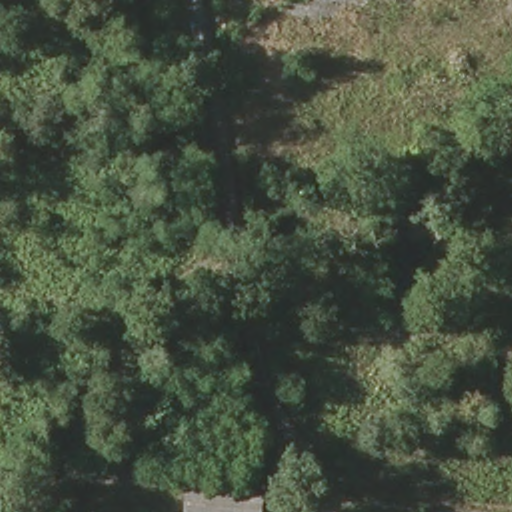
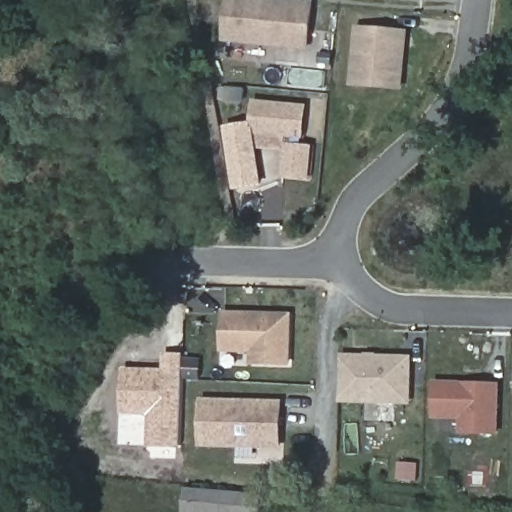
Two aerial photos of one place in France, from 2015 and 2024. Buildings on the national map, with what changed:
new [(228,0),(285,0),(316,3),(311,52),(225,44),(228,0)]
new [(355,30),(402,33),(397,89),(351,85),(355,30)]
new [(251,135),(254,102),(307,107),(305,140),(251,135)]
new [(305,145),(315,146),(312,182),(284,179),(287,151),(258,148),(263,186),(235,190),(224,126),(252,123),(251,135),(305,140),(305,145)]
new [(255,351),(226,350),(228,316),(290,317),(288,364),(255,363),(255,351)]
new [(182,448),(149,447),(150,415),(123,415),(126,368),(164,370),(165,353),(185,355),(182,448)]
new [(412,407),(340,405),(342,355),(413,356),(412,407)]
unchanged [(201,370),(197,375),(190,376),(184,372),(182,365),(187,358),(194,357),(200,362),(201,370)]
new [(501,436),(459,435),(460,421),(431,420),(432,382),(501,385),(501,436)]
new [(282,450),(200,448),(201,400),(283,401),(282,450)]
unchanged [(185,490),(261,496),(259,512),(182,512),(185,490)]

